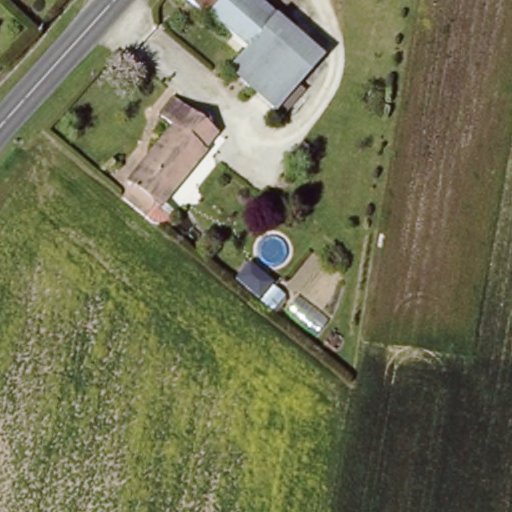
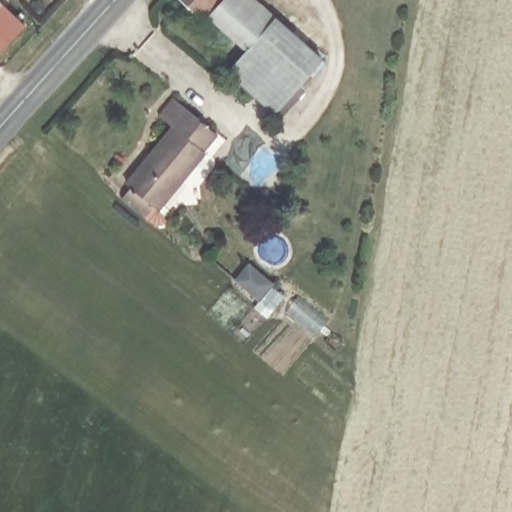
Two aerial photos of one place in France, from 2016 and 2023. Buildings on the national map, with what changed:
new [(1,0),(26,24),(0,53),(0,0),(1,0)]
unchanged [(161,4),(164,0),(257,0),(273,15),(317,58),(301,76),(303,78),(274,109),(263,98),(212,54),(210,53),(188,32),(161,4)]
unchanged [(134,181),(129,177),(173,124),(162,114),(176,97),(218,131),(204,148),(208,151),(163,204),(156,199),(143,214),(121,196),(134,181)]

